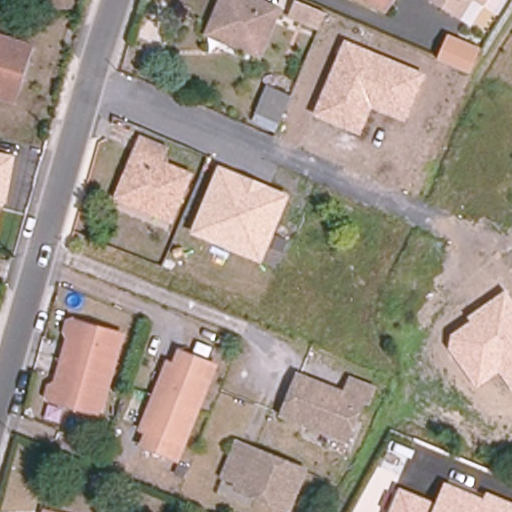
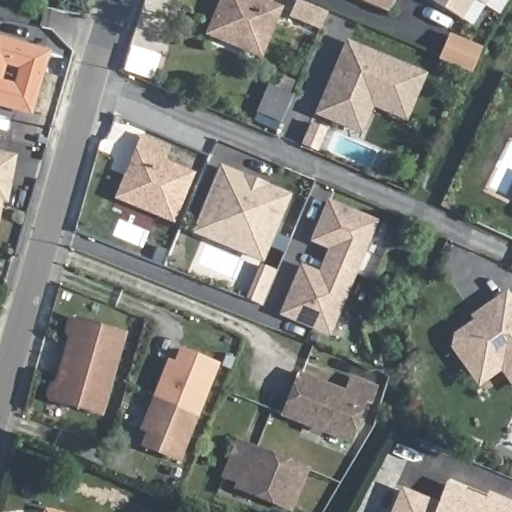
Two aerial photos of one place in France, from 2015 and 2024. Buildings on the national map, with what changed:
unchanged [(210,32),(224,0),(249,0),(280,13),(263,55),(210,32)]
unchanged [(383,7),(366,0),(388,0),(383,7)]
unchanged [(460,18),(431,0),(471,0),(460,18)]
unchanged [(483,4),(477,0),(485,0),(483,4)]
unchanged [(322,26),(295,14),(300,1),(328,12),(322,26)]
unchanged [(470,73),(438,60),(448,34),(480,48),(470,73)]
demolished [(32,45),(16,100),(0,96),(0,35),(32,45)]
unchanged [(405,121),(371,107),(361,135),(312,115),(344,40),(425,73),(405,121)]
new [(160,54),(152,80),(122,71),(130,45),(160,54)]
unchanged [(293,96),(281,122),(257,111),(269,85),(293,96)]
unchanged [(175,214),(120,191),(137,150),(192,173),(175,214)]
unchanged [(10,205),(0,203),(0,206),(0,152),(15,154),(10,205)]
unchanged [(261,263),(191,233),(219,166),(290,195),(261,263)]
new [(329,336),(277,315),(298,263),(317,270),(327,248),(308,240),(326,198),(378,220),(329,336)]
unchanged [(449,350),(451,334),(470,321),(467,317),(505,289),(512,299),(512,391),(499,372),(477,387),(449,350)]
unchanged [(69,317),(117,331),(106,370),(57,356),(69,317)]
unchanged [(176,460),(130,441),(169,341),(215,357),(176,460)]
unchanged [(95,410),(46,396),(57,356),(106,370),(95,410)]
unchanged [(352,373),(375,382),(366,404),(361,403),(348,435),(283,410),(299,369),(346,388),(352,373)]
unchanged [(237,438),(256,445),(309,467),(292,512),(291,512),(237,490),(244,475),(225,467),(237,438)]
unchanged [(436,502),(445,481),(484,499),(487,491),(512,502),(512,512),(389,512),(399,486),(436,502)]

